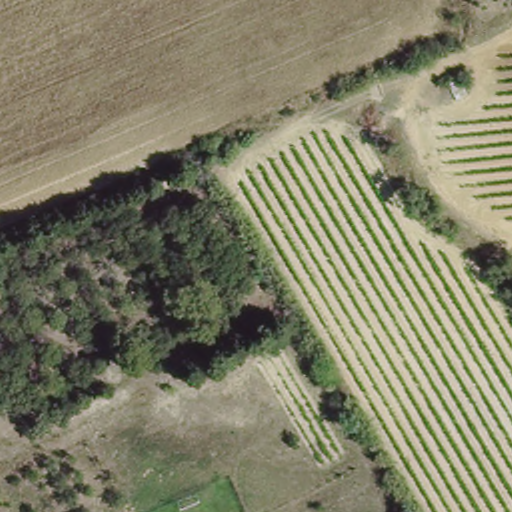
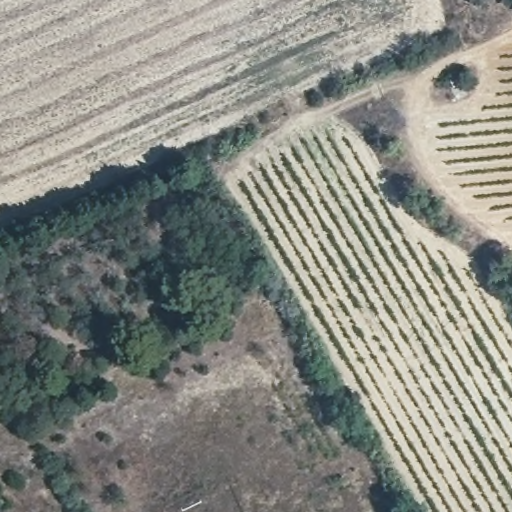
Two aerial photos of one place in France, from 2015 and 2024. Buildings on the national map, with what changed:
unchanged [(0,498),(2,500),(0,502),(0,498)]

